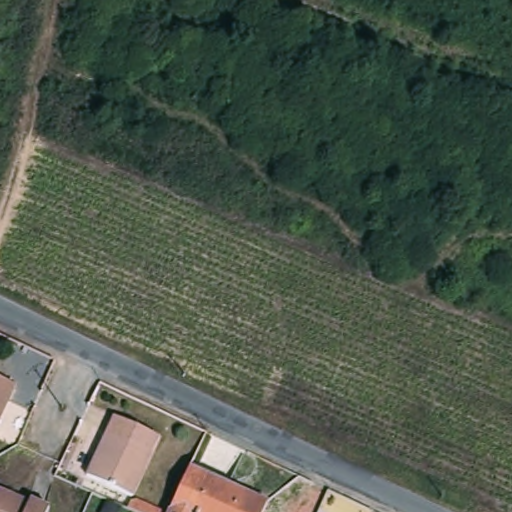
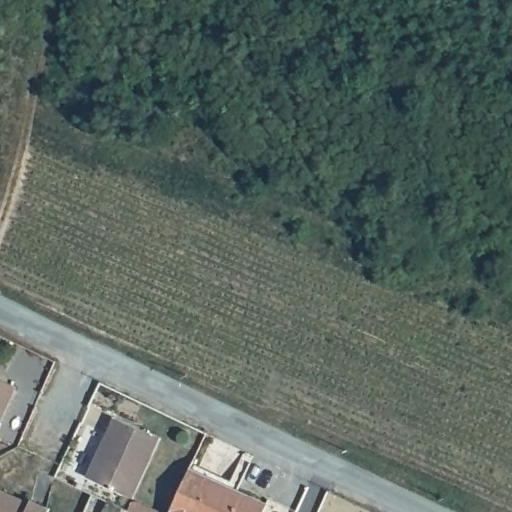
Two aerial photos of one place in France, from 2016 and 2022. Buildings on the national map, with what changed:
unchanged [(0,416),(0,378),(14,385),(0,416)]
unchanged [(158,437),(130,497),(84,475),(112,416),(158,437)]
unchanged [(269,504),(266,512),(172,512),(192,468),(269,504)]
unchanged [(21,493),(20,495),(30,500),(33,494),(52,503),(48,512),(0,512),(0,487),(1,484),(21,493)]
unchanged [(131,512),(114,512),(120,500),(133,506),(131,512)]

